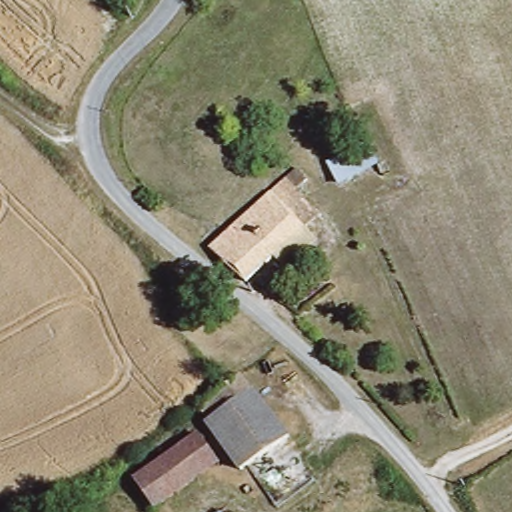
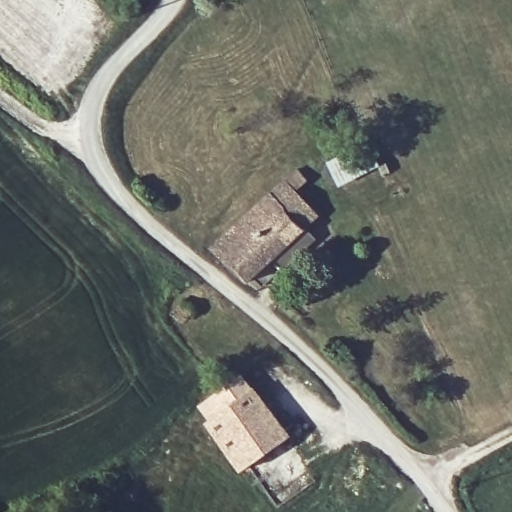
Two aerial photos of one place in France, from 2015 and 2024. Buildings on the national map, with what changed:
unchanged [(323,155),(364,138),(377,162),(338,185),(323,155)]
unchanged [(227,241),(276,184),(307,211),(298,222),(304,229),(254,287),(208,247),(219,235),(227,241)]
unchanged [(216,285),(195,312),(184,301),(204,274),(216,285)]
unchanged [(223,310),(212,300),(222,290),(233,299),(223,310)]
unchanged [(248,468),(196,405),(227,378),(238,369),(289,434),(248,468)]
demolished [(196,429),(220,461),(157,506),(132,476),(196,429)]

